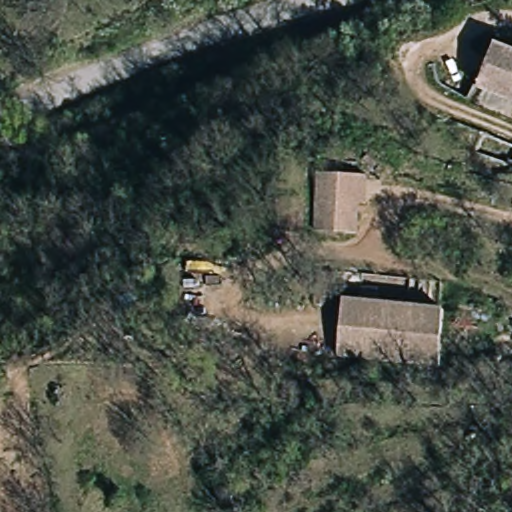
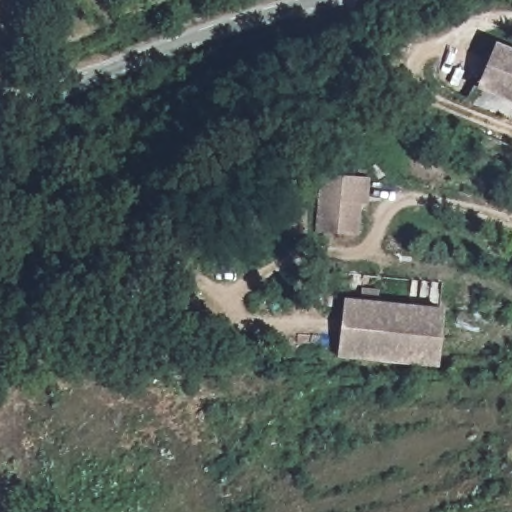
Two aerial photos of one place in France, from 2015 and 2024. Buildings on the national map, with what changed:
unchanged [(479,87),(496,41),(512,47),(512,99),(479,87)]
unchanged [(378,178),(373,206),(362,206),(358,237),(327,232),(317,230),(326,170),(328,171),(378,178)]
unchanged [(303,239),(276,235),(279,204),(307,207),(303,239)]
unchanged [(448,315),(442,364),(343,352),(349,303),(448,314),(448,315)]

